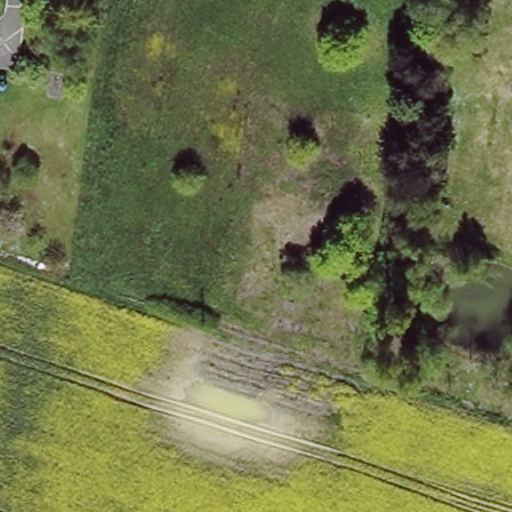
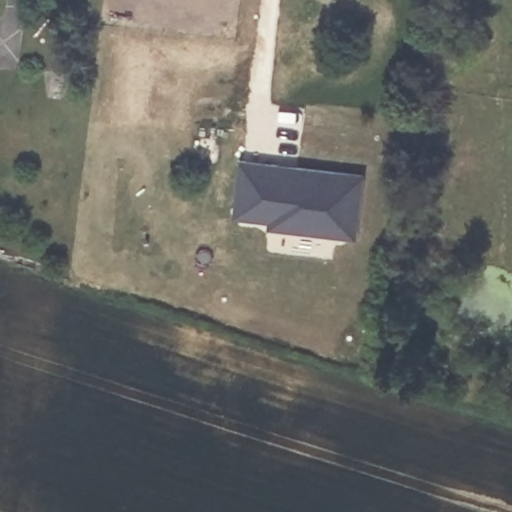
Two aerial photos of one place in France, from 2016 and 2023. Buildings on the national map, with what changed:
new [(233,217),(240,162),(277,167),(296,169),(360,177),(352,238),(288,230),(267,228),(269,221),(233,217)]

